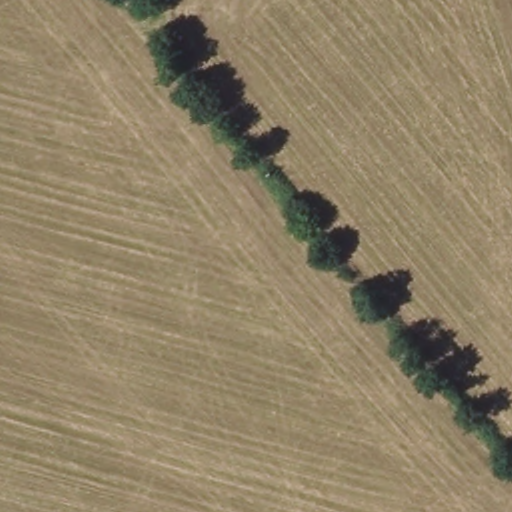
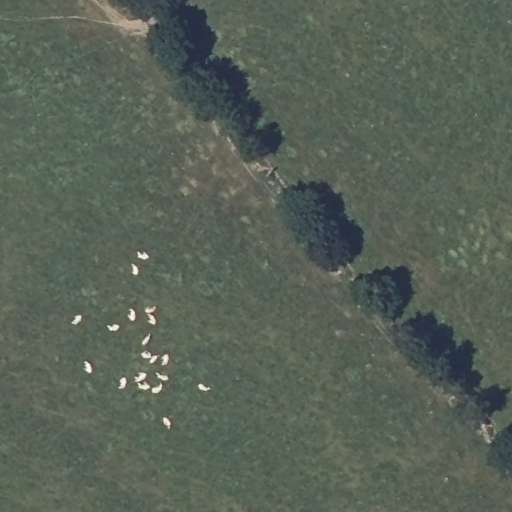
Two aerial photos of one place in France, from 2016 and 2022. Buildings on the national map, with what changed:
[]

